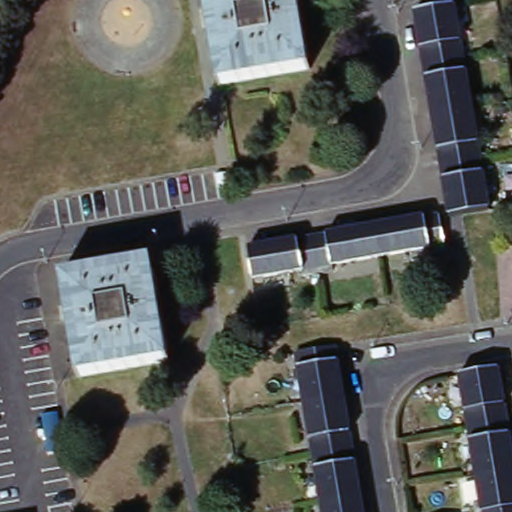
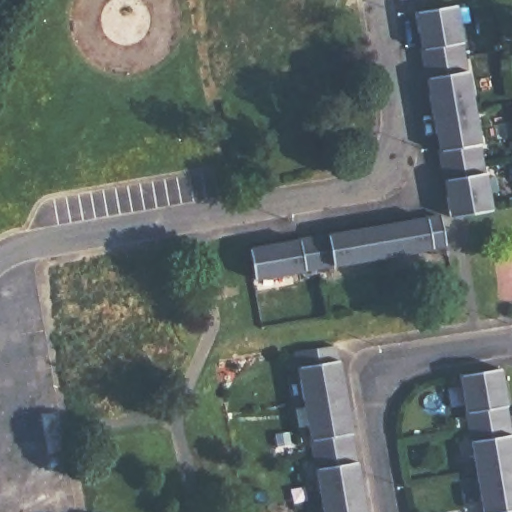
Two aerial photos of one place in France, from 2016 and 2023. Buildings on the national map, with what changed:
demolished [(314,72),(222,88),(211,30),(207,9),(206,0),(301,0),(314,72)]
unchanged [(417,16),(423,14),(458,8),(492,213),(453,220),(452,215),(417,16)]
unchanged [(442,217),(449,255),(432,258),(431,252),(336,269),(337,273),(307,279),(305,274),(257,282),(251,249),(442,217)]
demolished [(71,322),(67,305),(63,278),(106,270),(140,265),(155,262),(173,363),(81,379),(71,322)]
unchanged [(512,419),(512,512),(487,512),(462,363),(501,356),(512,419)]
unchanged [(324,512),(297,365),(338,358),(365,512),(324,512)]

